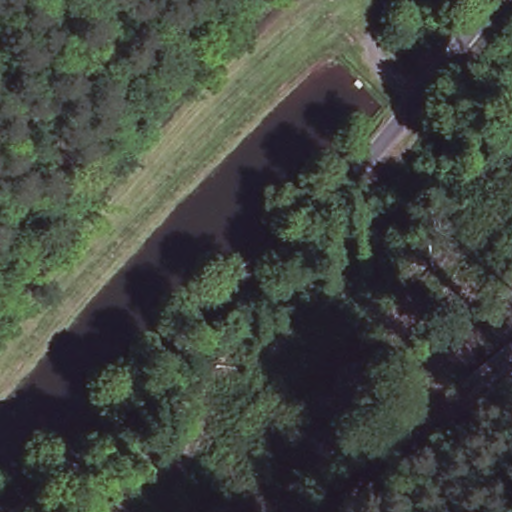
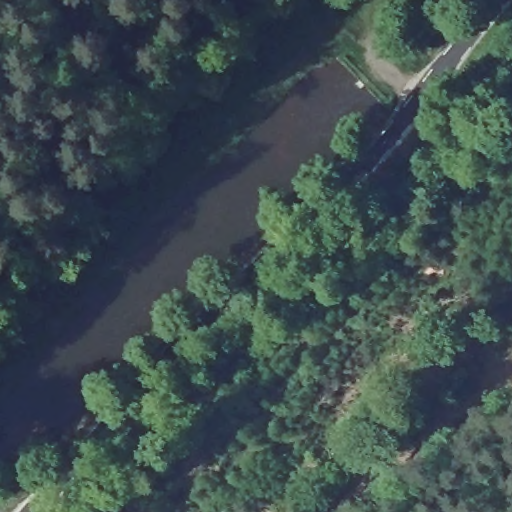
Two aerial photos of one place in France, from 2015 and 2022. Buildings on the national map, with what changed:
unchanged [(450,131),(433,152),(415,138),(431,117),(450,131)]

